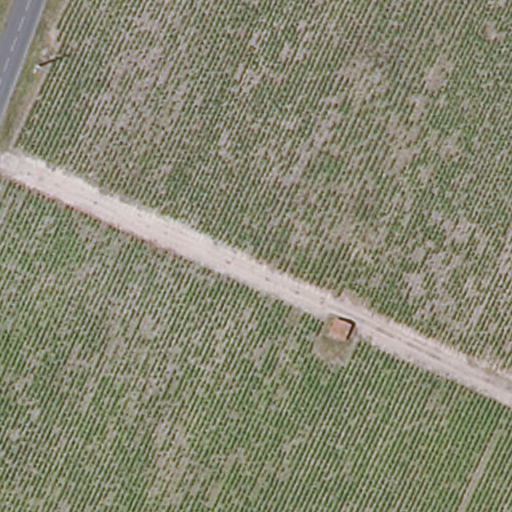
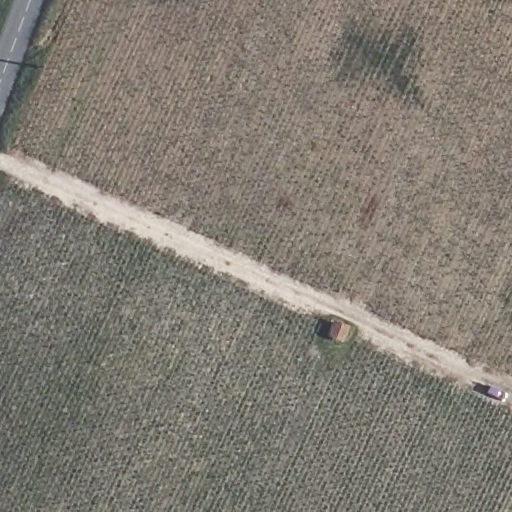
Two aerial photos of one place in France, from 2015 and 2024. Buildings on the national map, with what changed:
unchanged [(328,327),(345,332),(340,345),(325,339),(328,327)]

